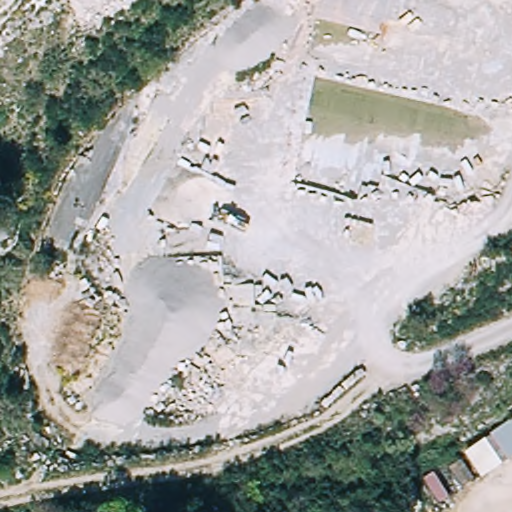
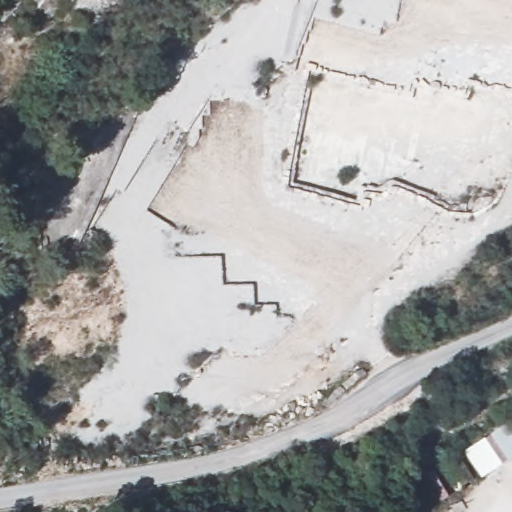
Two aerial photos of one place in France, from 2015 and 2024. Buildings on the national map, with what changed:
unchanged [(490,437),(512,422),(512,458),(506,462),(483,477),(468,451),(490,437)]

